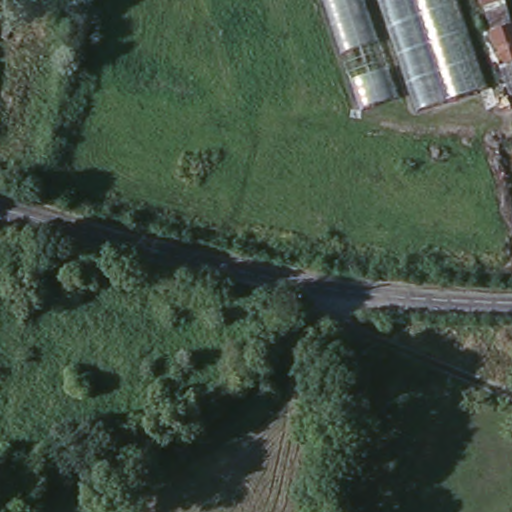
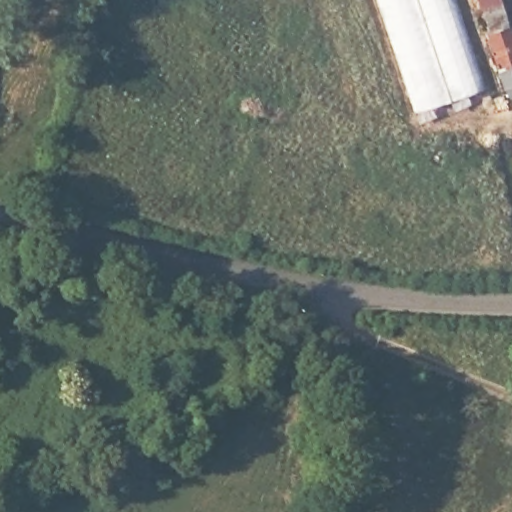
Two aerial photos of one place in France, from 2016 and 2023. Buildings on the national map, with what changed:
demolished [(364,0),(397,99),(365,108),(328,0),(364,0)]
unchanged [(413,114),(374,0),(452,0),(481,89),(413,114)]
unchanged [(504,89),(510,86),(481,0),(497,0),(512,48),(512,98),(508,99),(504,89)]

